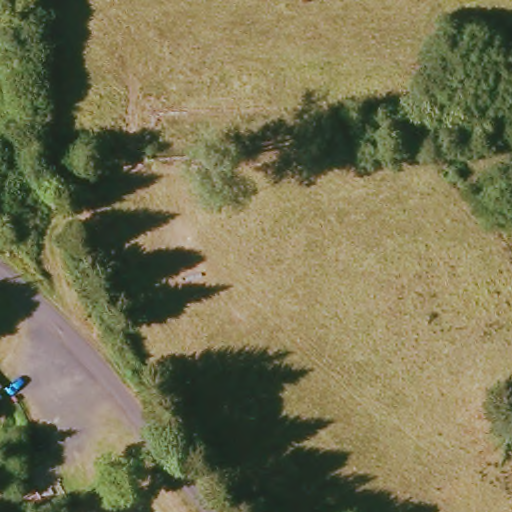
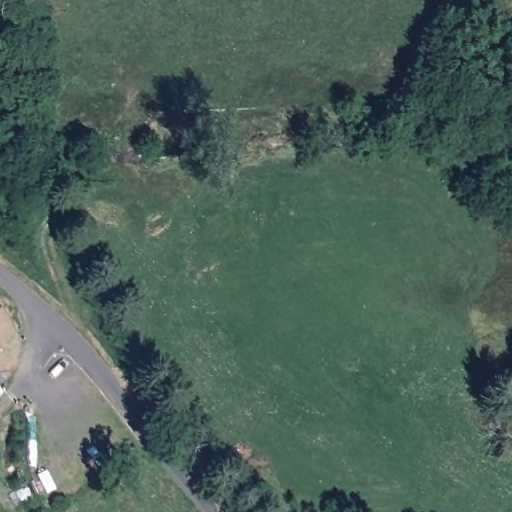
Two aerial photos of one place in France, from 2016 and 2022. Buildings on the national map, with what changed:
unchanged [(0,396),(0,389),(3,392),(0,396)]

